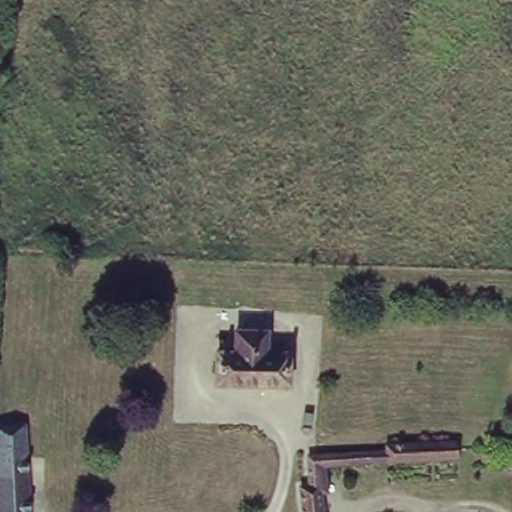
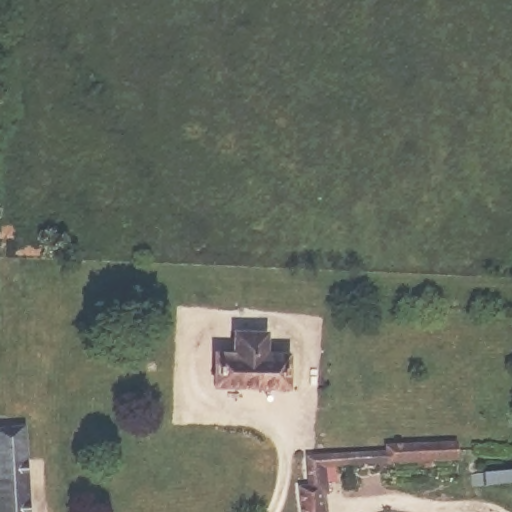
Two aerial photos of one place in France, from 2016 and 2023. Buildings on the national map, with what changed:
unchanged [(227,351),(237,351),(238,337),(267,338),(267,353),(287,353),(284,388),(225,386),(227,351)]
unchanged [(31,425),(34,512),(0,512),(0,426),(31,425)]
unchanged [(296,486),(303,484),(300,451),(403,447),(403,438),(459,436),(459,463),(322,470),(324,512),(298,512),(296,486)]

